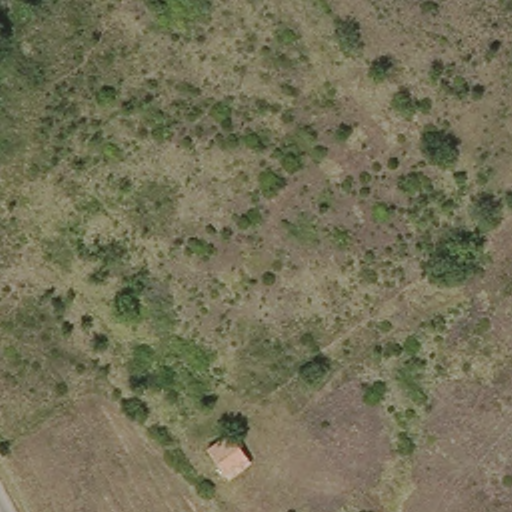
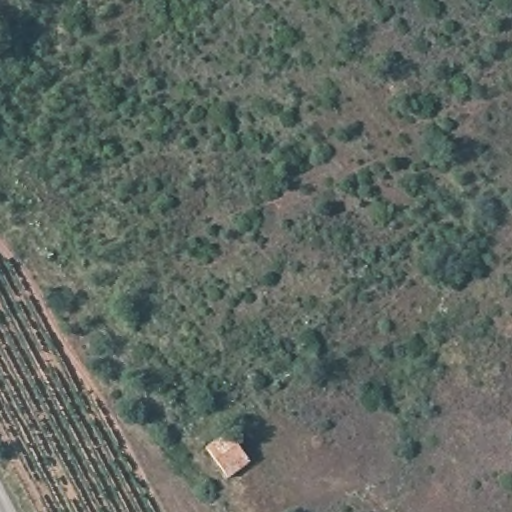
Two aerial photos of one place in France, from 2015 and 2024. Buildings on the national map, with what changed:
unchanged [(249,462),(227,479),(205,449),(227,433),(249,462)]

